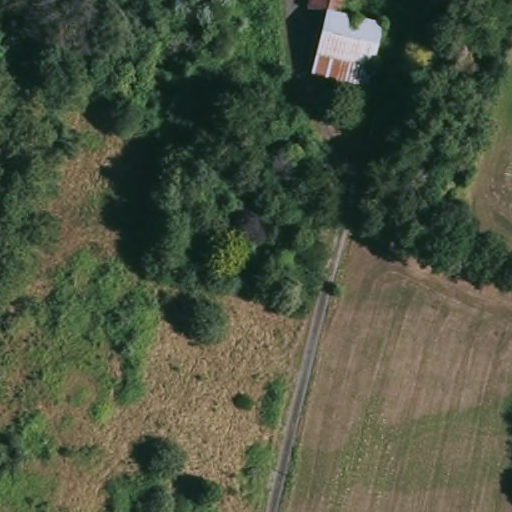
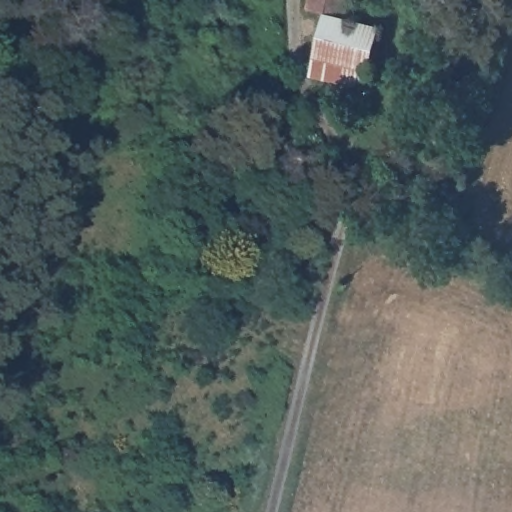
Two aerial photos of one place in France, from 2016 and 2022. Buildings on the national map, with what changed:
unchanged [(350,22),(334,17),(311,10),(314,0),(356,0),(350,22)]
unchanged [(350,22),(385,32),(364,93),(314,78),(334,17),(350,22)]

